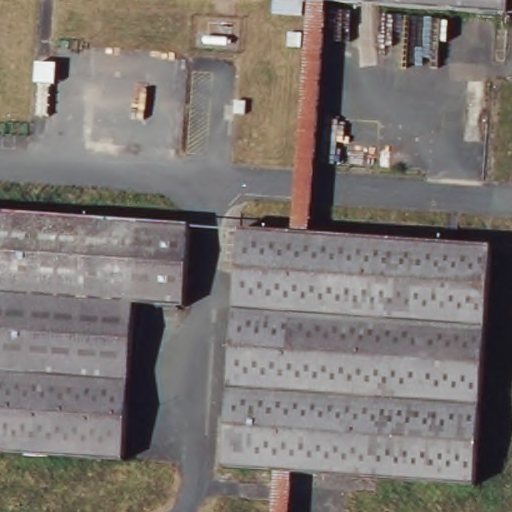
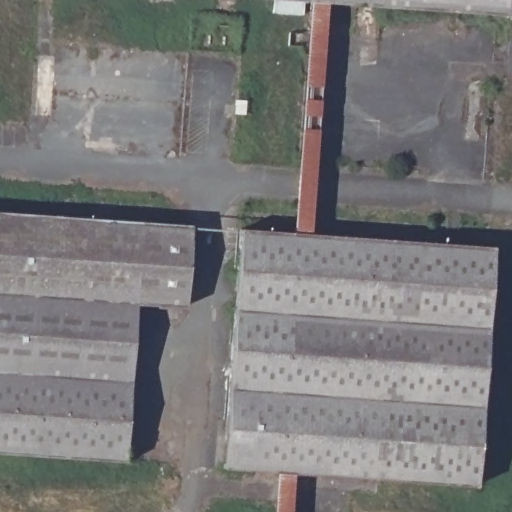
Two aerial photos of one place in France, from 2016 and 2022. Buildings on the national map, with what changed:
unchanged [(295,234),(312,0),(326,1),(310,234),(295,234)]
unchanged [(326,1),(312,0),(305,0),(510,0),(508,15),(326,1)]
unchanged [(191,226),(185,308),(136,304),(125,462),(0,453),(0,213),(191,226)]
unchanged [(240,229),(295,234),(310,234),(492,247),(475,486),(296,474),(281,473),(224,469),(240,229)]
unchanged [(281,473),(296,474),(294,512),(279,512),(281,473)]

